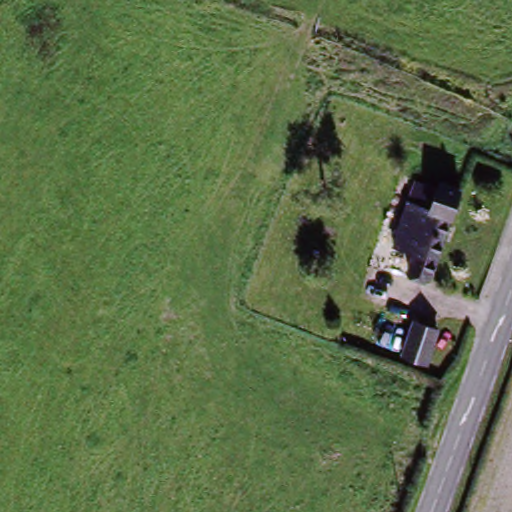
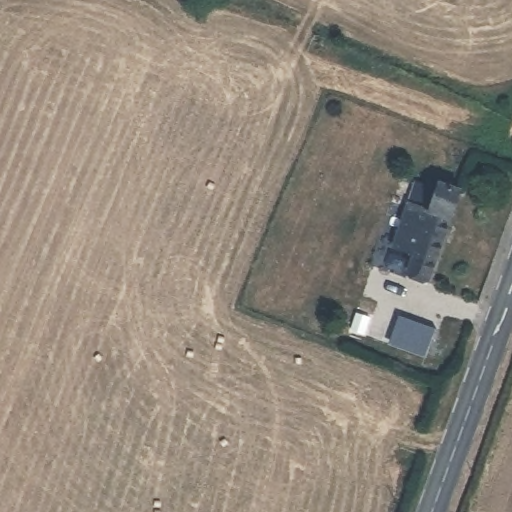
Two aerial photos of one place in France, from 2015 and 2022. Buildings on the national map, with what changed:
unchanged [(438,186),(455,193),(423,276),(403,269),(399,279),(377,271),(410,188),(434,198),(438,186)]
unchanged [(440,332),(428,368),(399,358),(403,347),(387,341),(395,314),(440,332)]

